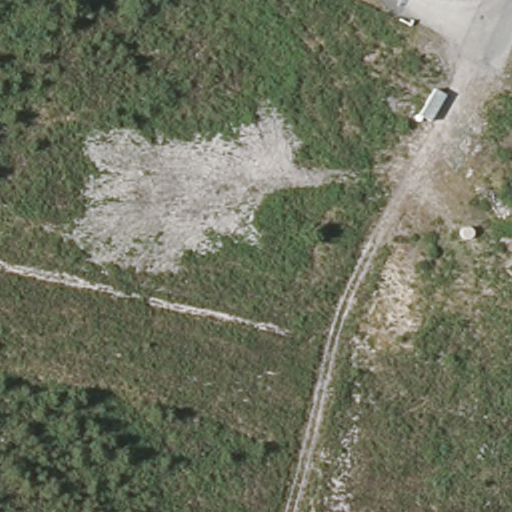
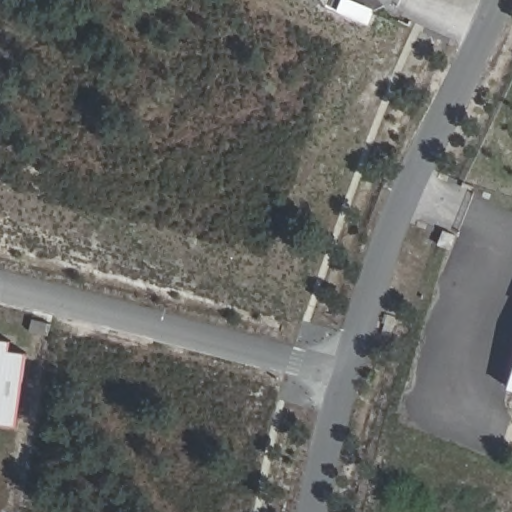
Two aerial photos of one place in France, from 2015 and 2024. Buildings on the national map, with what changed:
new [(0,339),(11,340),(10,351),(27,353),(19,425),(0,423),(0,339)]
new [(512,379),(512,389),(509,388),(512,379)]

